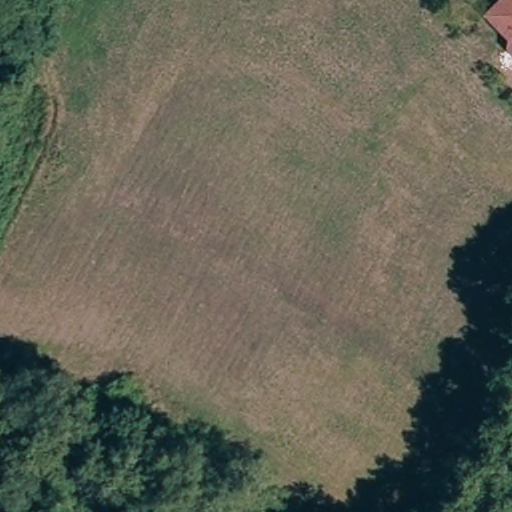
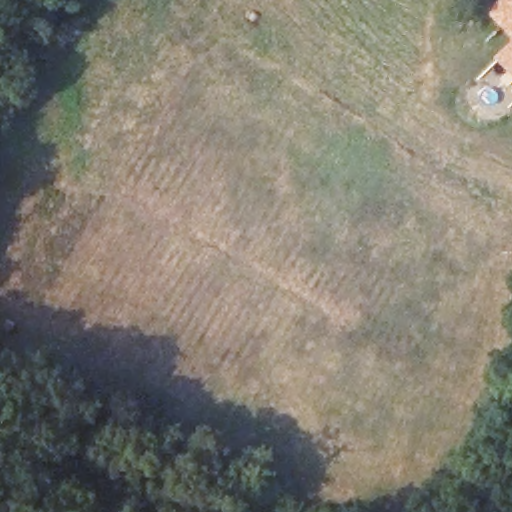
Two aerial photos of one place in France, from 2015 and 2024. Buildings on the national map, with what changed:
unchanged [(487,3),(491,0),(512,0),(512,27),(487,3)]
unchanged [(508,41),(512,37),(512,45),(508,41)]

